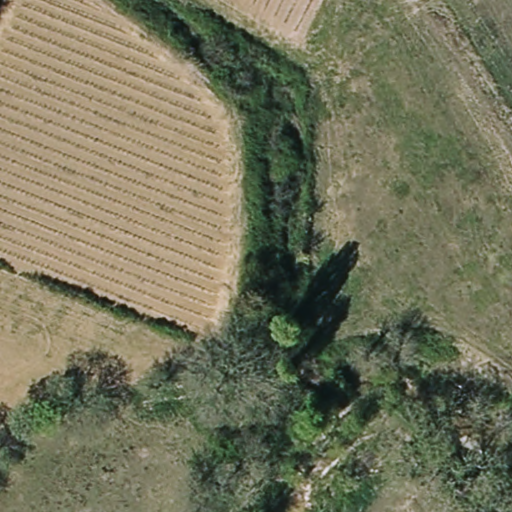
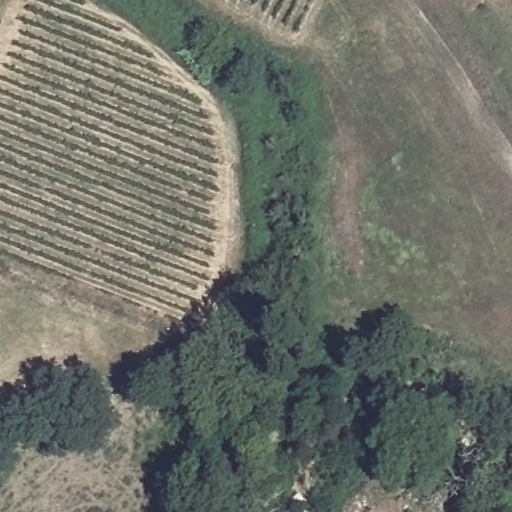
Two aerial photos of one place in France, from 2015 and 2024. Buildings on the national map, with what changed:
[]

